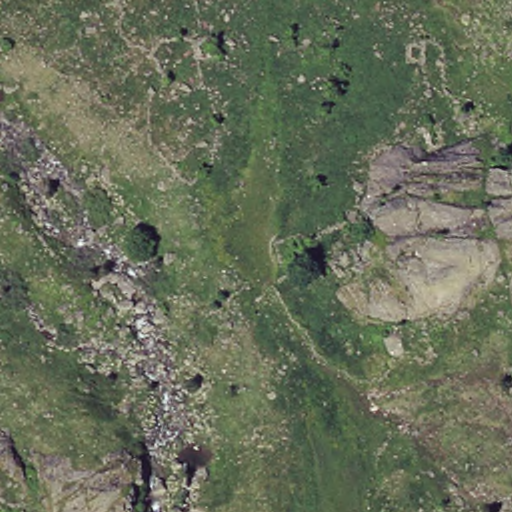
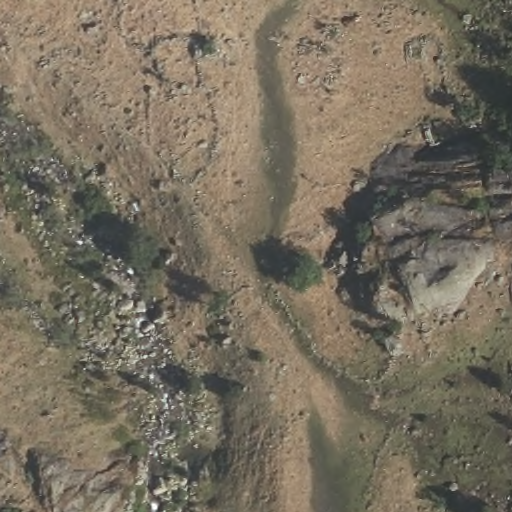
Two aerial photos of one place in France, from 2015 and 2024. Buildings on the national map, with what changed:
unchanged [(202,34),(220,34),(224,47),(208,47),(202,34)]

